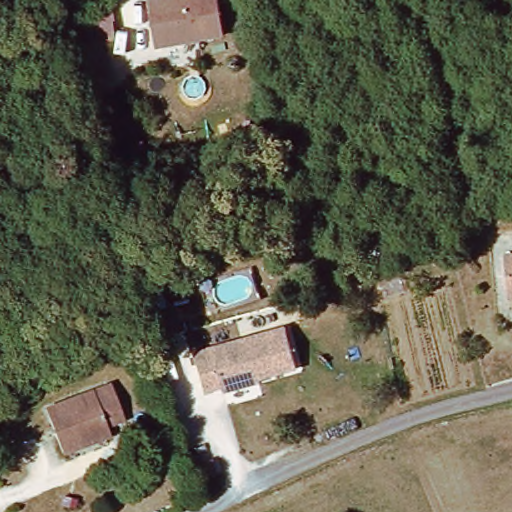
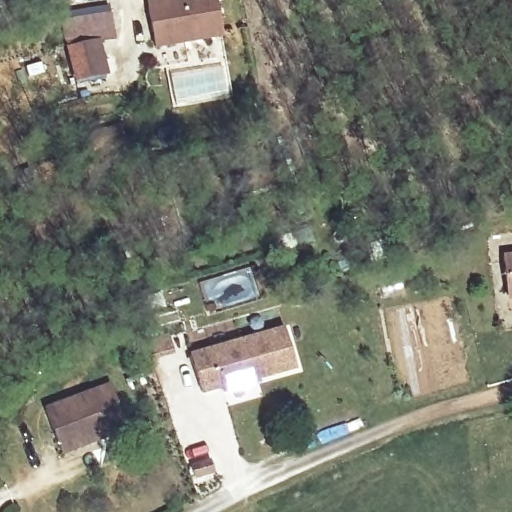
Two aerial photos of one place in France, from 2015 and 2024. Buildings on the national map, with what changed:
unchanged [(151,7),(180,0),(220,0),(229,35),(162,51),(151,7)]
new [(110,9),(116,39),(102,43),(101,40),(65,47),(60,19),(110,9)]
new [(101,40),(102,43),(110,75),(73,84),(65,47),(101,40)]
unchanged [(503,259),(512,257),(512,297),(508,298),(503,259)]
unchanged [(207,394),(195,354),(285,329),(296,368),(260,378),(262,386),(232,394),(230,389),(207,394)]
unchanged [(115,389),(128,424),(108,431),(111,441),(65,458),(49,414),(115,389)]

